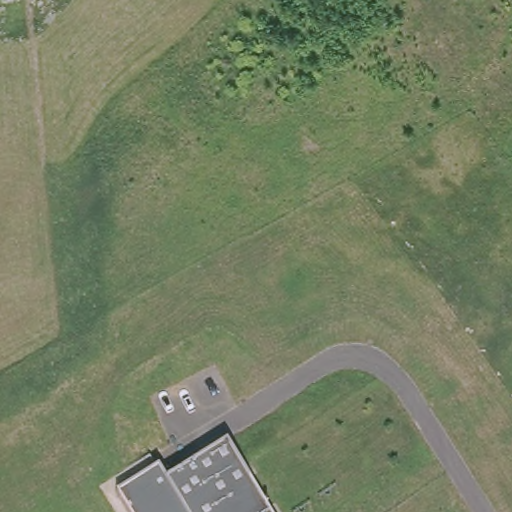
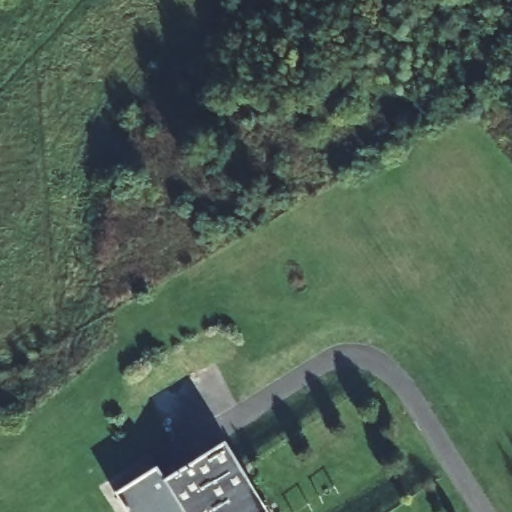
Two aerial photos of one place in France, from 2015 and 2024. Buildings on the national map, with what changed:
unchanged [(149,455),(166,481),(225,444),(267,512),(126,512),(107,481),(149,455)]

